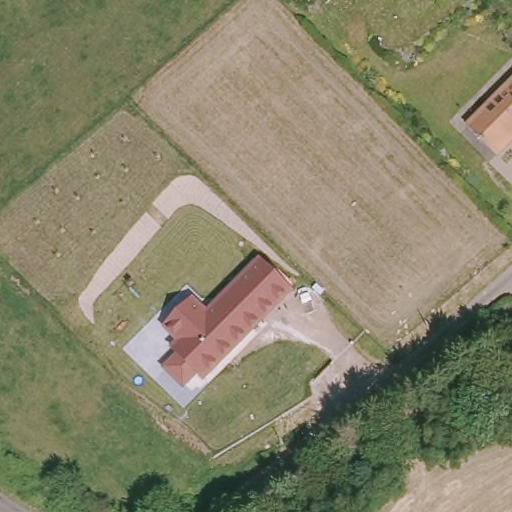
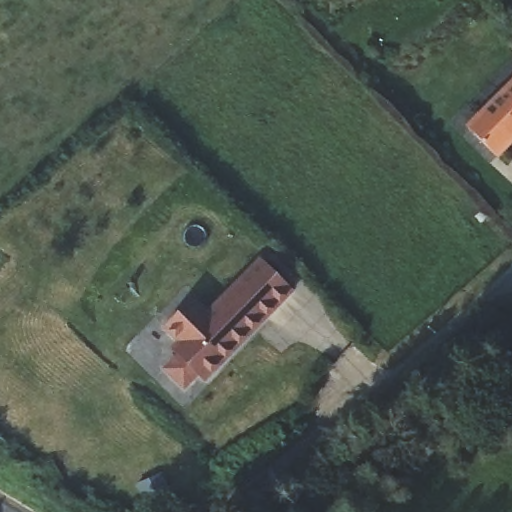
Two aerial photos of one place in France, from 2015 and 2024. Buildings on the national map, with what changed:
unchanged [(512,88),(512,143),(488,166),(461,137),(512,88)]
unchanged [(294,292),(204,383),(199,376),(182,392),(161,367),(177,353),(169,347),(176,341),(162,326),(193,296),(207,311),(258,257),(294,292)]

